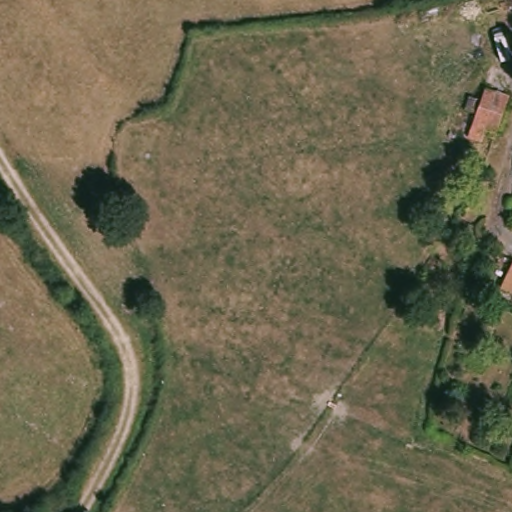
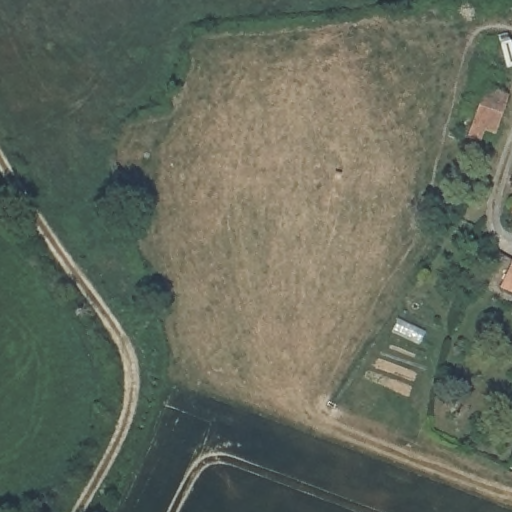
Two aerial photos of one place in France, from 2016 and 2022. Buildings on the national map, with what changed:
unchanged [(478,107),(481,99),(505,106),(493,141),(482,137),(477,149),(464,144),(471,122),(463,119),(468,104),(478,107)]
unchanged [(512,289),(512,298),(509,296),(512,289)]

